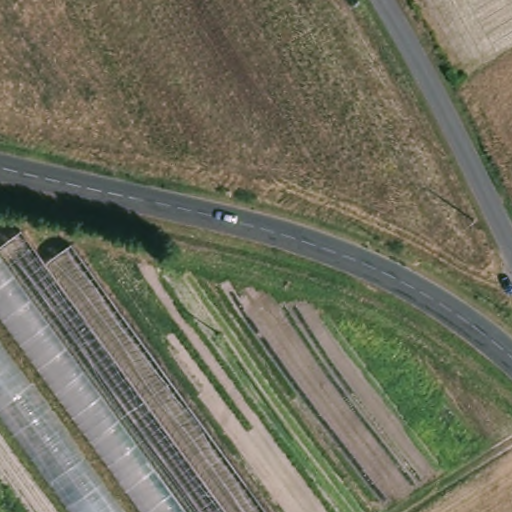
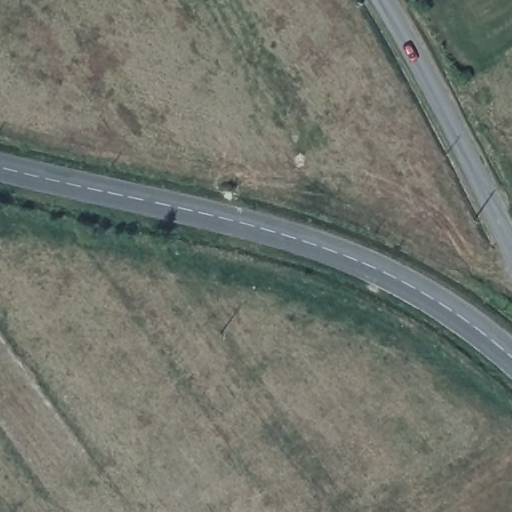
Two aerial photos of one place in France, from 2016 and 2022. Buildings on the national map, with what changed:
demolished [(0,313),(0,247),(23,231),(47,260),(31,270),(207,512),(143,512),(0,313)]
demolished [(268,512),(207,512),(31,270),(47,260),(73,244),(268,512)]
demolished [(0,425),(0,344),(123,512),(63,512),(0,425)]

